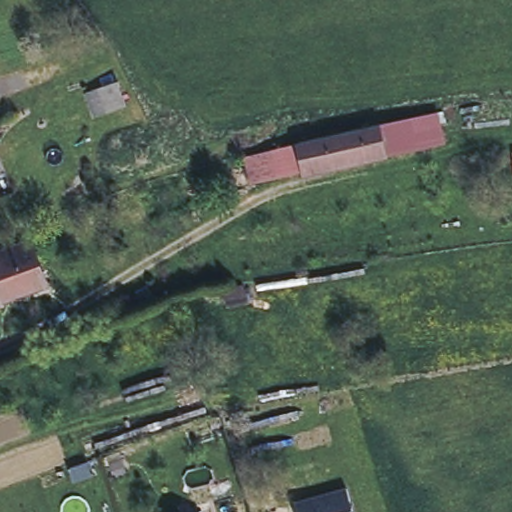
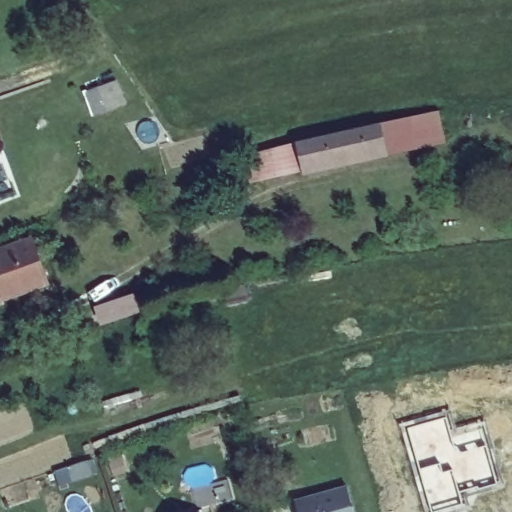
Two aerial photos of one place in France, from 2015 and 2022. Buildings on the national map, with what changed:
unchanged [(116,83),(124,104),(95,115),(86,95),(116,83)]
unchanged [(443,108),(448,137),(388,149),(381,120),(443,108)]
unchanged [(365,123),(381,120),(388,149),(310,167),(302,139),(365,123)]
unchanged [(302,139),(310,167),(256,180),(250,153),(302,139)]
unchanged [(27,237),(29,242),(37,240),(51,278),(5,295),(6,298),(0,300),(0,250),(1,246),(27,237)]
unchanged [(245,287),(249,302),(228,306),(224,291),(245,287)]
new [(133,295),(138,312),(102,324),(96,307),(133,295)]
new [(447,417),(454,444),(485,435),(497,483),(457,493),(461,504),(436,512),(429,512),(407,428),(447,417)]
unchanged [(346,486),(354,512),(297,512),(295,501),(346,486)]

